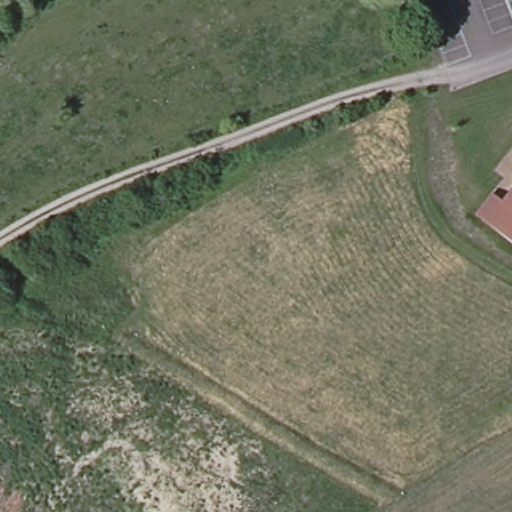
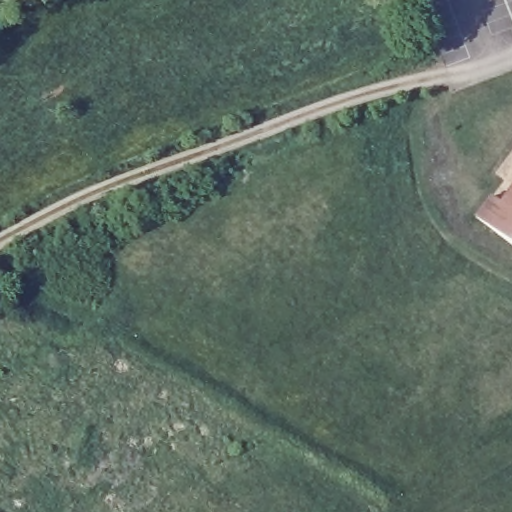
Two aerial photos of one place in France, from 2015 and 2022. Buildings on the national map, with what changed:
unchanged [(476,214),(492,193),(502,201),(512,189),(512,242),(476,214)]

